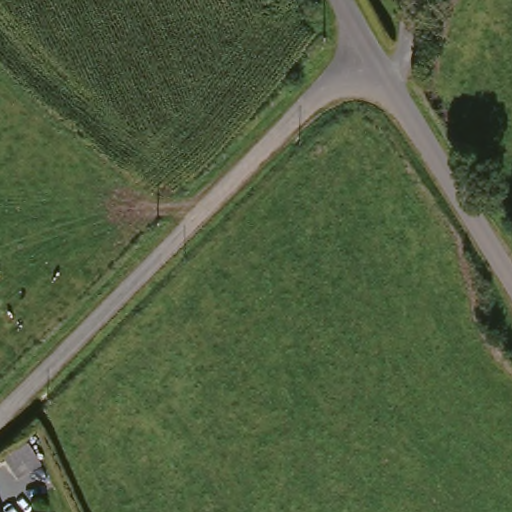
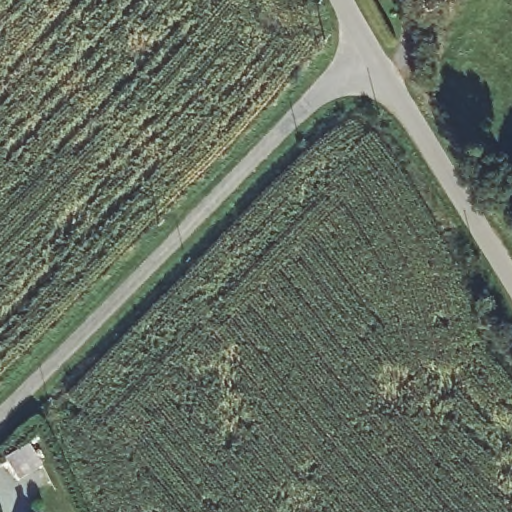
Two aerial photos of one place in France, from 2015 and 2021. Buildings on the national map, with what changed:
[]

